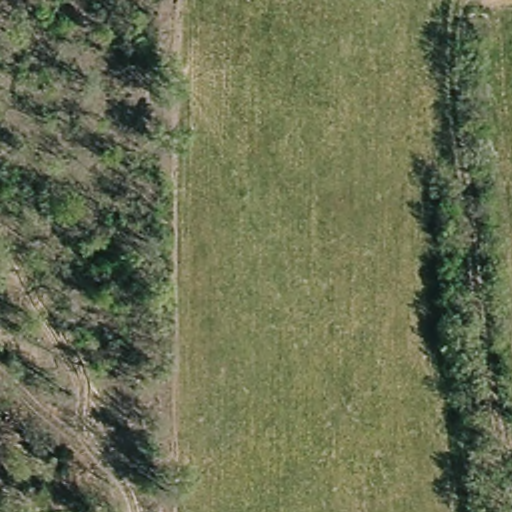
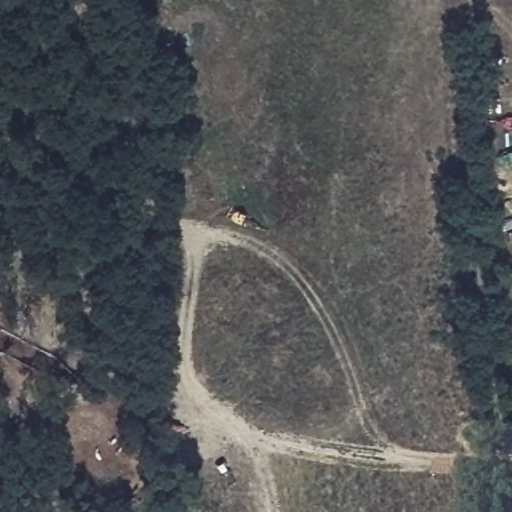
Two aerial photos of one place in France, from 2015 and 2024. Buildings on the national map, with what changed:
[]

